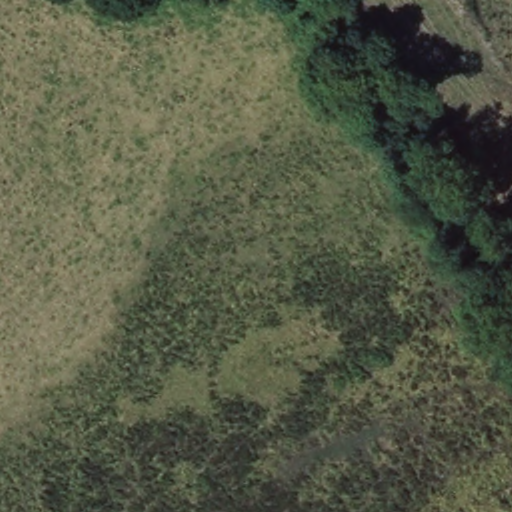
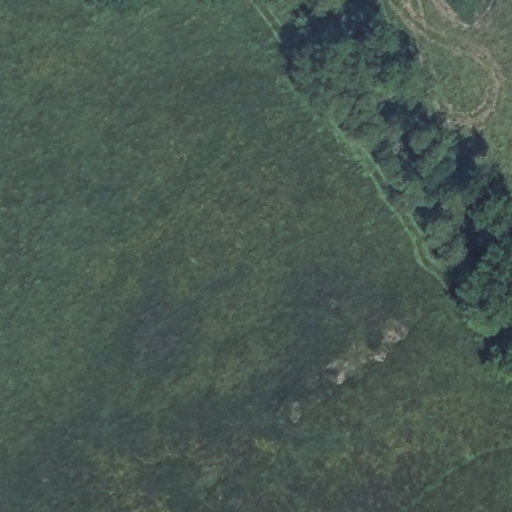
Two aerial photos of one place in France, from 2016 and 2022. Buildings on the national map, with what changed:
[]

